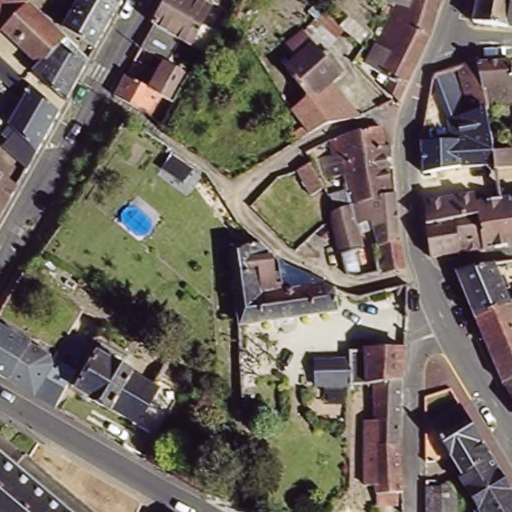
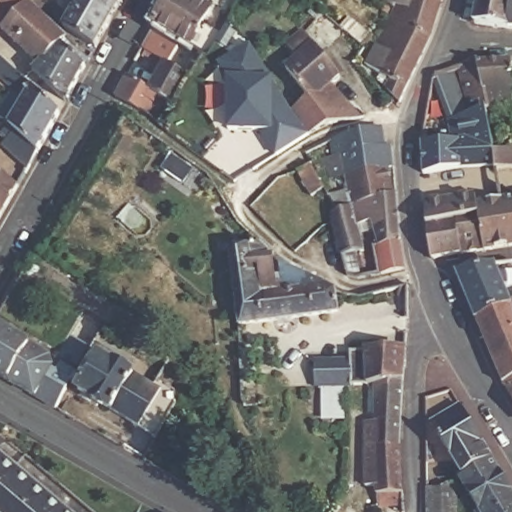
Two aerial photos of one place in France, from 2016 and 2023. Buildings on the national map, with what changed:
unchanged [(25,0),(27,2),(27,3),(1,30),(0,32),(0,0),(25,0)]
unchanged [(96,46),(63,27),(78,2),(74,0),(109,0),(118,5),(96,46)]
unchanged [(121,0),(118,5),(109,0),(121,0)]
unchanged [(155,82),(170,55),(146,40),(158,19),(168,0),(211,0),(217,4),(209,19),(219,24),(210,40),(210,47),(203,44),(190,67),(195,70),(181,96),(176,95),(165,115),(120,89),(130,69),(155,82)]
unchanged [(438,0),(430,30),(399,96),(386,82),(391,75),(366,61),(393,11),(385,7),(387,2),(395,5),(395,2),(396,0),(438,0)]
unchanged [(396,0),(395,2),(391,0),(396,0)]
unchanged [(482,0),(512,0),(512,23),(478,17),(482,0)]
unchanged [(38,65),(1,30),(27,2),(65,39),(60,44),(38,65)]
unchanged [(295,125),(308,118),(298,104),(318,91),(292,59),(303,50),(294,38),(310,25),(343,67),(331,78),(363,106),(340,112),(306,131),(295,125)]
unchanged [(85,66),(65,100),(33,70),(38,65),(60,44),(85,66)]
new [(236,134),(237,81),(225,64),(252,47),(293,114),(310,137),(277,155),(273,148),(266,135),(236,134)]
unchanged [(500,160),(428,168),(427,136),(465,135),(462,114),(456,116),(430,121),(440,69),(457,63),(472,110),(475,110),(463,61),(483,55),(483,56),(512,56),(512,98),(510,99),(512,104),(512,164),(500,166),(500,160)]
unchanged [(22,78),(15,87),(0,74),(0,57),(22,78)]
unchanged [(2,144),(6,139),(2,135),(31,85),(60,111),(27,167),(2,144)]
unchanged [(374,165),(350,160),(345,148),(339,150),(336,136),(357,130),(386,122),(389,140),(396,139),(398,160),(393,161),(374,165)]
unchanged [(355,201),(350,181),(339,184),(330,152),(339,150),(345,148),(350,160),(374,165),(393,161),(397,189),(355,201)]
unchanged [(318,187),(304,164),(316,157),(330,181),(318,187)]
unchanged [(17,186),(4,208),(0,206),(0,207),(0,173),(17,186)]
unchanged [(385,259),(388,268),(361,273),(350,270),(337,216),(340,205),(343,205),(355,201),(397,189),(401,187),(406,235),(411,263),(392,267),(390,258),(385,259)]
unchanged [(512,242),(489,244),(437,253),(433,220),(431,196),(467,192),(475,190),(481,190),(482,197),(503,195),(506,195),(512,194),(512,242)]
unchanged [(0,206),(4,208),(3,209),(0,215),(0,207),(0,206)]
unchanged [(337,306),(241,321),(240,310),(230,245),(263,239),(265,240),(283,257),(286,260),(335,282),(337,306)]
unchanged [(511,299),(475,312),(457,266),(477,262),(495,259),(511,299)]
unchanged [(494,357),(475,312),(511,299),(512,299),(512,374),(502,378),(494,357)]
unchanged [(95,318),(92,325),(85,321),(88,315),(95,318)]
unchanged [(59,401),(0,367),(0,319),(80,366),(59,401)]
unchanged [(102,346),(136,366),(115,405),(80,383),(102,346)]
unchanged [(375,495),(371,441),(372,384),(368,384),(352,384),(351,384),(350,352),(366,351),(405,350),(402,397),(401,404),(398,447),(402,481),(402,489),(403,493),(404,505),(382,507),(381,495),(375,495)]
unchanged [(350,361),(351,384),(315,385),(314,363),(350,361)]
unchanged [(136,366),(162,383),(140,421),(115,405),(136,366)]
unchanged [(512,393),(502,378),(512,374),(512,393)]
unchanged [(431,418),(460,401),(491,453),(462,470),(431,418)]
unchanged [(20,460),(82,512),(0,512),(0,443),(20,460)]
unchanged [(460,471),(462,470),(491,453),(512,488),(512,499),(487,512),(484,512),(460,471)]
unchanged [(426,506),(426,484),(437,483),(445,480),(456,496),(456,505),(457,512),(426,512),(426,506)]
unchanged [(512,499),(512,512),(487,512),(512,499)]

